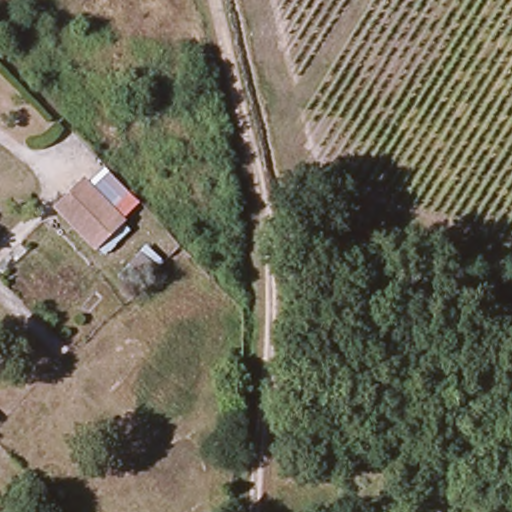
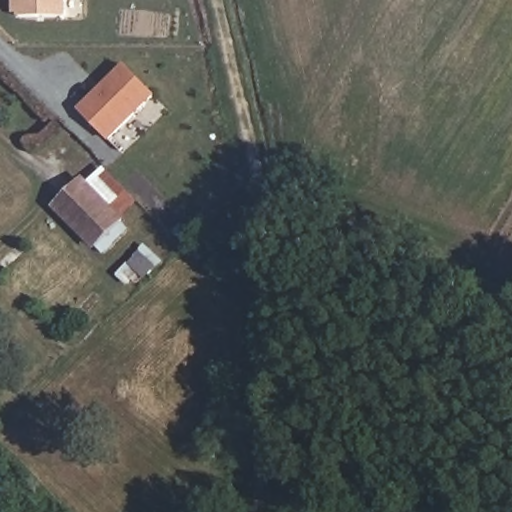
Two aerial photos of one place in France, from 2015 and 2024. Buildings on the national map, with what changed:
new [(19,18),(18,0),(63,0),(64,17),(19,18)]
new [(125,67),(156,99),(111,143),(80,111),(125,67)]
unchanged [(124,219),(96,247),(57,208),(85,181),(124,219)]

